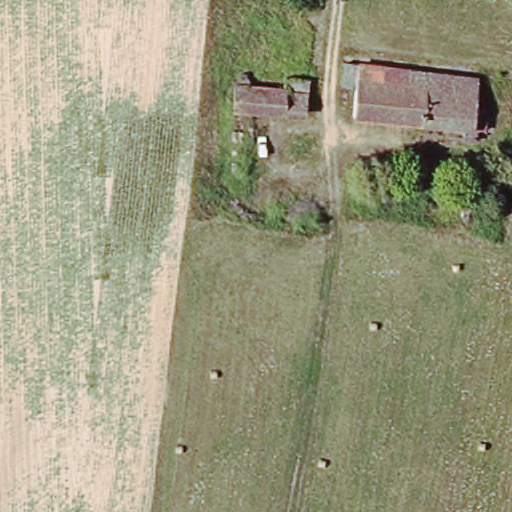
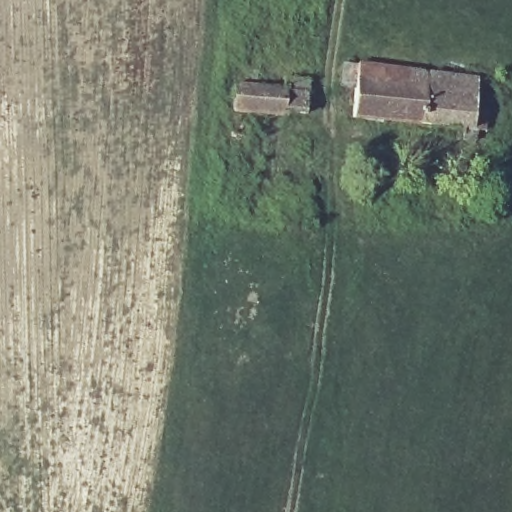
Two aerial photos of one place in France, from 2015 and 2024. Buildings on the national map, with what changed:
unchanged [(406,131),(407,124),(358,119),(361,86),(346,85),(348,61),(363,63),(483,77),(475,144),(465,143),(466,129),(446,127),(445,135),(406,131)]
unchanged [(284,90),(286,79),(308,80),(305,116),(245,110),(231,109),(234,85),(237,85),(248,86),(284,90)]

